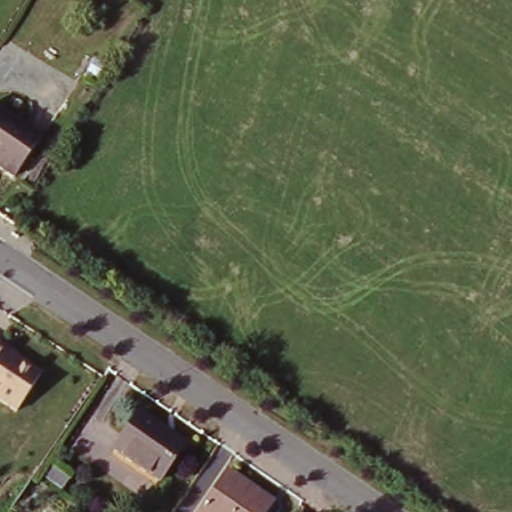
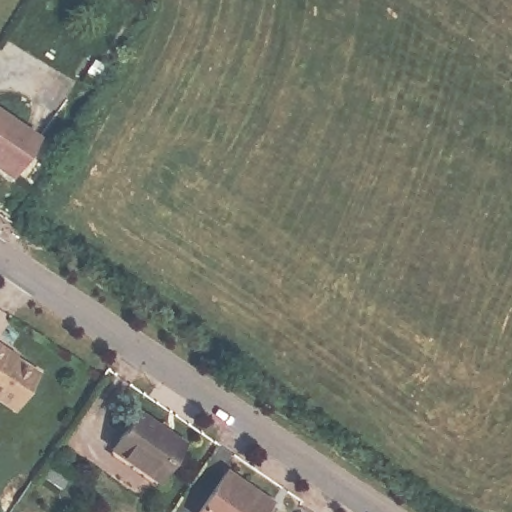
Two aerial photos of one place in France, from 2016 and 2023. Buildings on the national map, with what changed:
unchanged [(36,143),(9,182),(0,175),(0,117),(36,143)]
unchanged [(40,373),(15,414),(0,404),(0,347),(40,373)]
unchanged [(156,486),(110,455),(137,416),(183,447),(156,486)]
unchanged [(270,512),(202,512),(227,476),(273,507),(270,512)]

